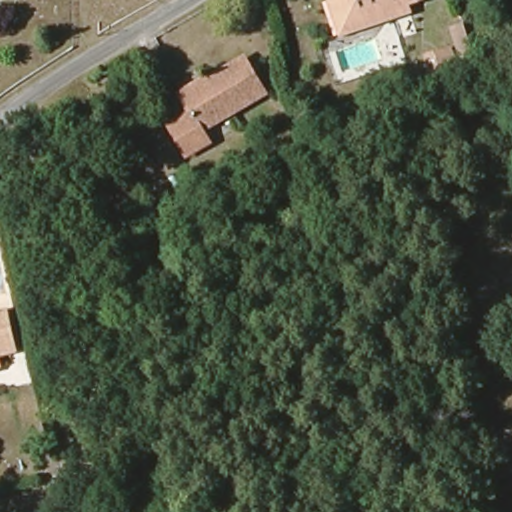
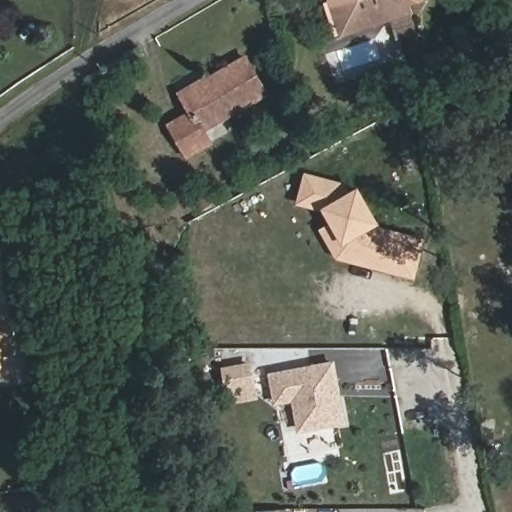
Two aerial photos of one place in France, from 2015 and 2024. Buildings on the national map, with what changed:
unchanged [(341,0),(417,0),(411,3),(352,27),(343,5),(342,3),(341,0)]
unchanged [(351,38),(341,42),(327,9),(338,5),(342,3),(343,5),(352,27),(411,3),(415,12),(351,38)]
unchanged [(465,78),(439,88),(429,62),(455,52),(465,78)]
unchanged [(189,114),(180,96),(244,60),(263,95),(203,130),(211,142),(184,156),(167,126),(189,114)]
new [(416,279),(335,260),(318,230),(329,225),(321,211),(295,205),(303,172),(343,183),(341,192),(357,190),(379,227),(426,239),(416,279)]
new [(148,230),(156,264),(137,268),(129,234),(148,230)]
unchanged [(0,355),(0,316),(4,315),(14,351),(0,355)]
new [(339,391),(340,397),(345,423),(301,431),(295,400),(278,404),(273,377),(334,365),(339,391)]

